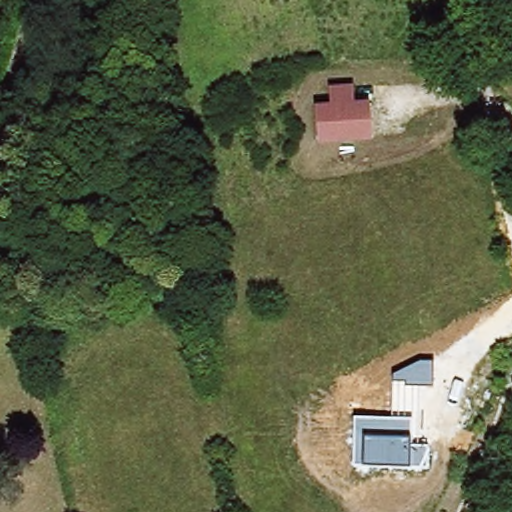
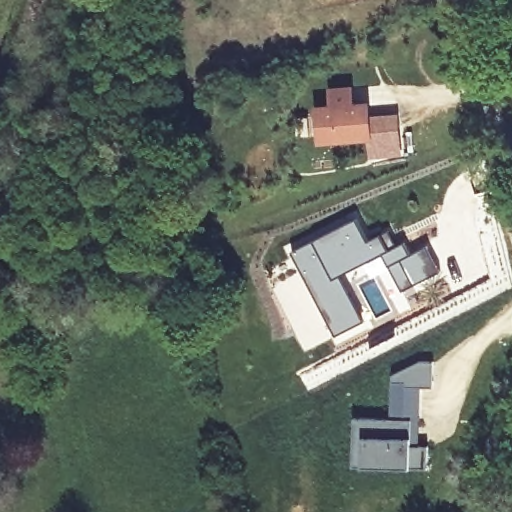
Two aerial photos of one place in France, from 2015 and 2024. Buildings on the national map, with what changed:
unchanged [(332,103),(330,85),(353,83),(354,100),(370,99),(372,140),(317,145),(314,104),(332,103)]
new [(356,218),(367,240),(382,233),(390,249),(380,255),(340,275),(332,279),(313,240),(356,218)]
new [(313,240),(332,279),(340,275),(362,323),(335,337),(321,311),(293,251),(313,240)]
new [(390,249),(404,242),(410,254),(427,244),(441,274),(400,295),(380,255),(390,249)]
new [(394,376),(421,362),(434,363),(434,389),(405,388),(406,384),(393,383),(394,376)]
unchanged [(412,421),(410,449),(429,448),(429,472),(353,469),(354,419),(412,421)]

